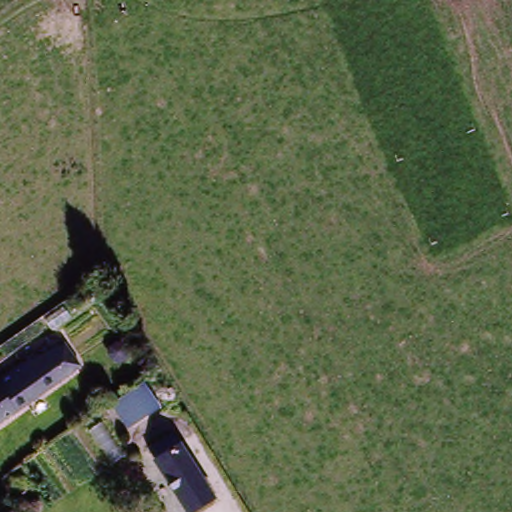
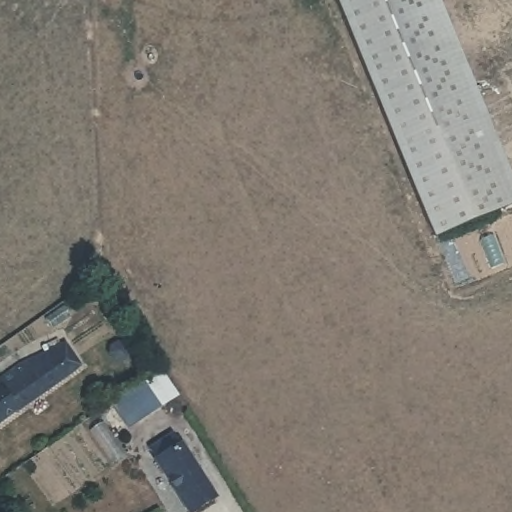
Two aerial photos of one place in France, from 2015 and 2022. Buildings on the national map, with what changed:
new [(438,0),(512,177),(512,206),(432,239),(334,0),(438,0)]
unchanged [(76,375),(0,425),(0,375),(19,364),(60,350),(76,375)]
unchanged [(110,414),(124,405),(153,385),(169,409),(137,429),(123,437),(110,414)]
unchanged [(180,442),(218,504),(204,512),(189,512),(155,457),(180,442)]

